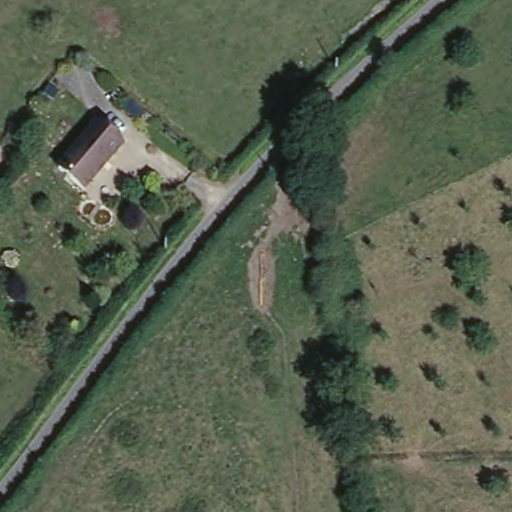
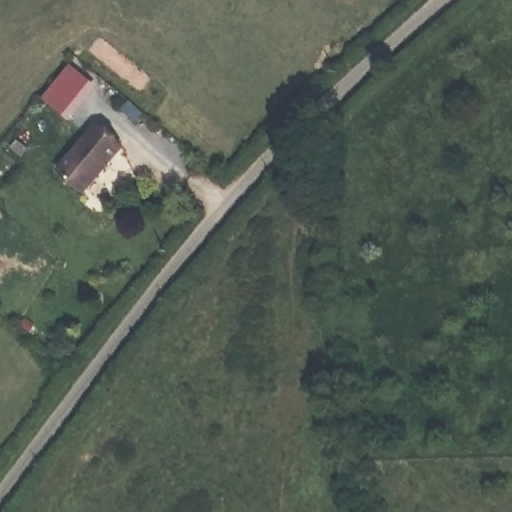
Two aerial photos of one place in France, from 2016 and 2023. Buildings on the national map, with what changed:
new [(74,60),(98,81),(70,114),(45,95),(74,60)]
unchanged [(124,141),(88,189),(62,170),(97,122),(124,141)]

